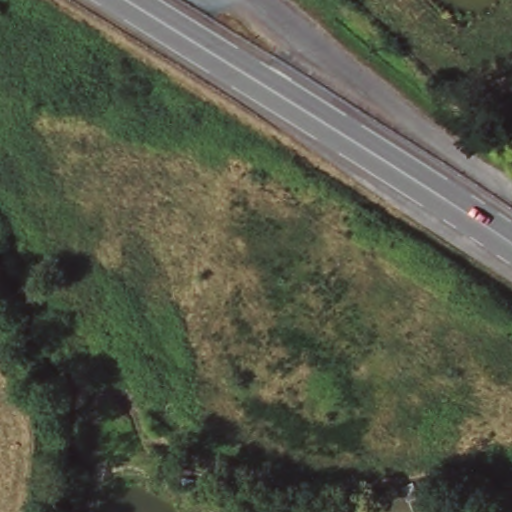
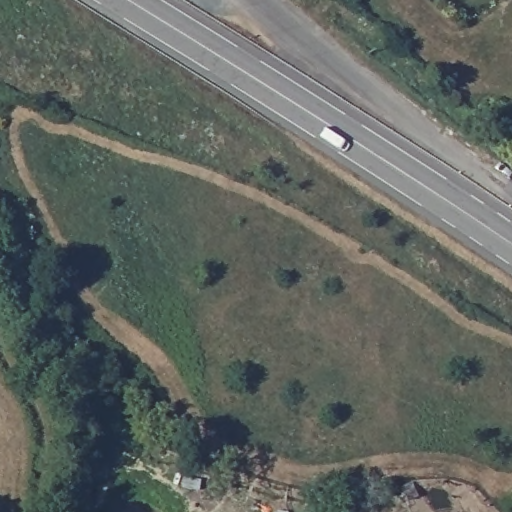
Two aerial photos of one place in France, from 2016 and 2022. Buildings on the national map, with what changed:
[]

